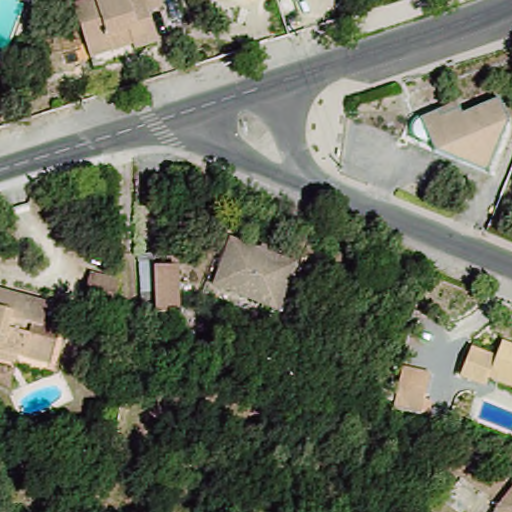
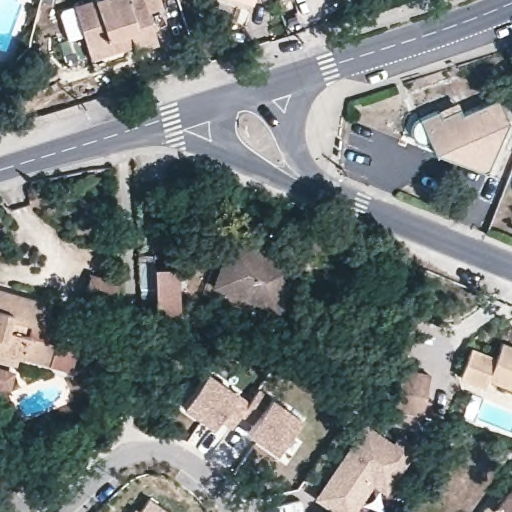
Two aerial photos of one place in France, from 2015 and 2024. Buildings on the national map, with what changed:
unchanged [(90,42),(78,4),(91,0),(164,0),(168,9),(152,13),(163,43),(139,50),(137,47),(96,60),(90,42)]
unchanged [(252,4),(237,0),(253,0),(252,4)]
unchanged [(440,114),(460,106),(462,112),(499,100),(509,120),(488,172),(434,150),(434,140),(414,133),(412,122),(418,115),(438,108),(440,114)]
unchanged [(276,310),(214,282),(230,237),(294,264),(276,310)]
unchanged [(184,260),(189,317),(154,320),(151,262),(184,260)]
unchanged [(118,312),(89,304),(97,277),(125,285),(118,312)]
unchanged [(45,326),(27,323),(24,335),(58,343),(53,364),(22,358),(21,365),(16,382),(0,377),(0,292),(49,306),(45,326)]
unchanged [(488,380),(484,386),(464,378),(477,349),(497,357),(503,343),(512,347),(512,389),(488,380)]
new [(204,372),(236,393),(239,389),(249,396),(248,397),(238,411),(231,422),(220,415),(214,425),(182,403),(204,372)]
unchanged [(426,375),(422,410),(402,408),(406,373),(426,375)]
new [(248,397),(249,396),(254,388),(300,420),(277,453),(249,433),(256,423),(238,411),(248,397)]
new [(392,461),(409,437),(424,447),(394,489),(382,481),(359,512),(348,512),(326,497),(325,496),(364,442),(392,461)]
unchanged [(500,512),(491,506),(512,477),(512,512),(500,512)]
new [(144,509),(154,495),(178,512),(136,512),(141,506),(144,509)]

